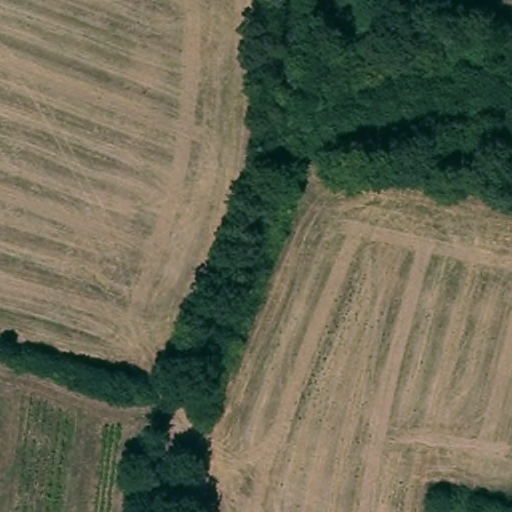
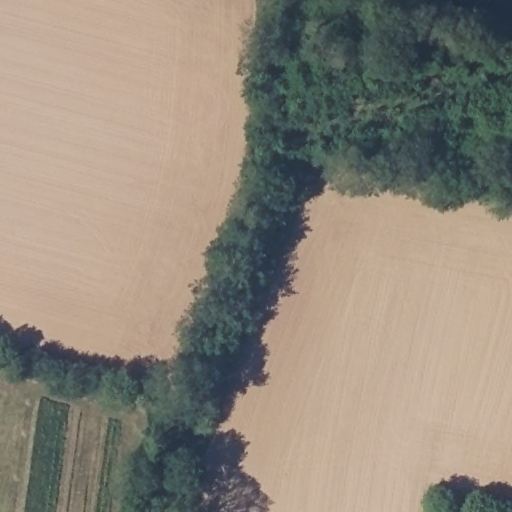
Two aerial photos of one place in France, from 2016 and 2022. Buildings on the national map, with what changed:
[]

